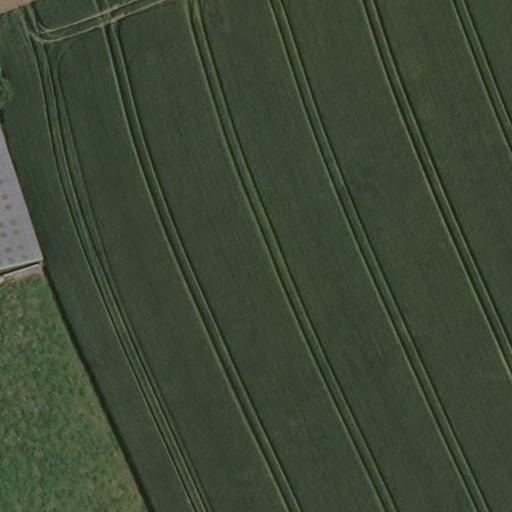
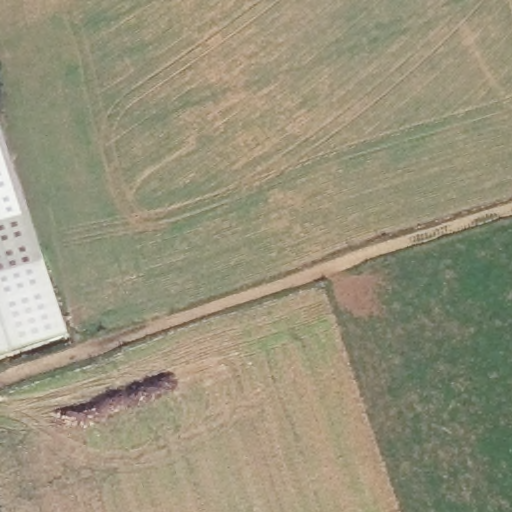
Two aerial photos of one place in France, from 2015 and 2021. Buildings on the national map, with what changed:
unchanged [(45,258),(0,273),(0,121),(45,258)]
new [(45,258),(70,333),(0,356),(0,273),(45,258)]

